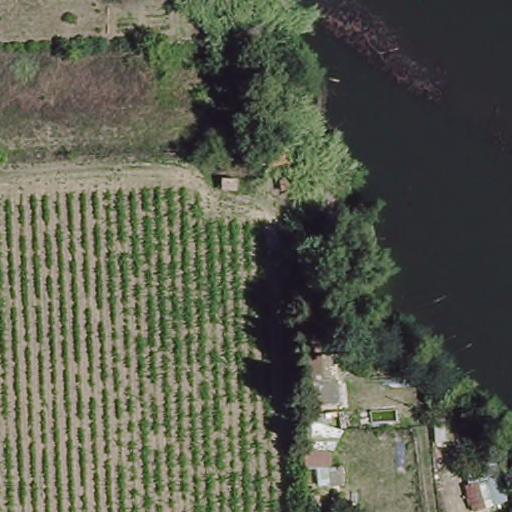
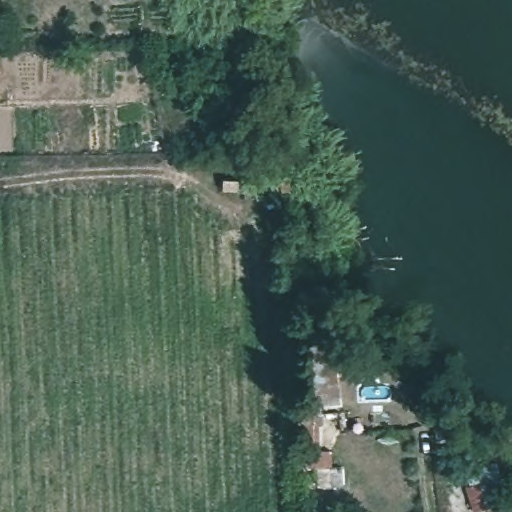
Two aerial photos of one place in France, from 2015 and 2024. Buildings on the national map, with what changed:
unchanged [(276,169),(272,157),(291,151),(295,162),(276,169)]
unchanged [(225,177),(240,177),(240,187),(224,186),(225,177)]
unchanged [(307,387),(317,387),(318,407),(308,407),(307,387)]
unchanged [(328,413),(328,447),(338,447),(336,482),(309,485),(306,414),(328,413)]
unchanged [(472,511),(470,485),(512,470),(512,502),(472,511)]

